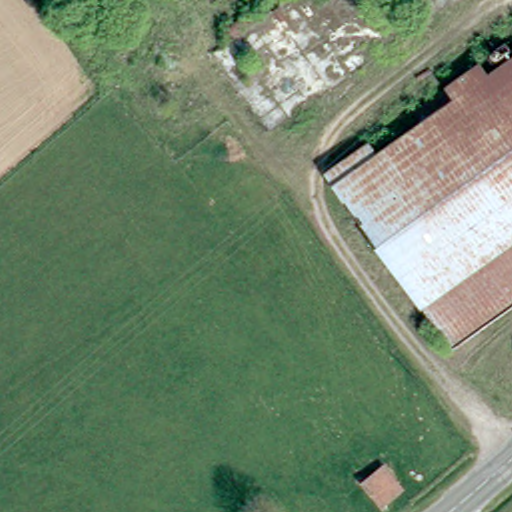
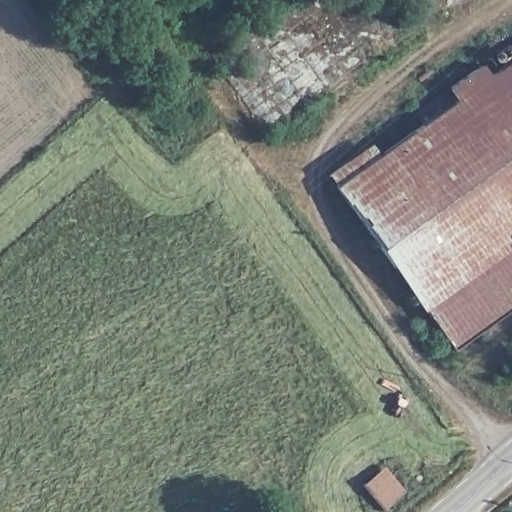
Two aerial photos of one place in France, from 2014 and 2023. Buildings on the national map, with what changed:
unchanged [(492,63),(487,55),(507,42),(510,50),(492,63)]
unchanged [(489,73),(512,57),(512,241),(500,222),(491,228),(416,127),(423,124),(414,111),(450,85),(480,63),(489,73)]
unchanged [(337,185),(416,127),(491,228),(500,222),(512,241),(512,301),(457,343),(337,185)]
unchanged [(384,506),(362,480),(384,462),(405,488),(384,506)]

